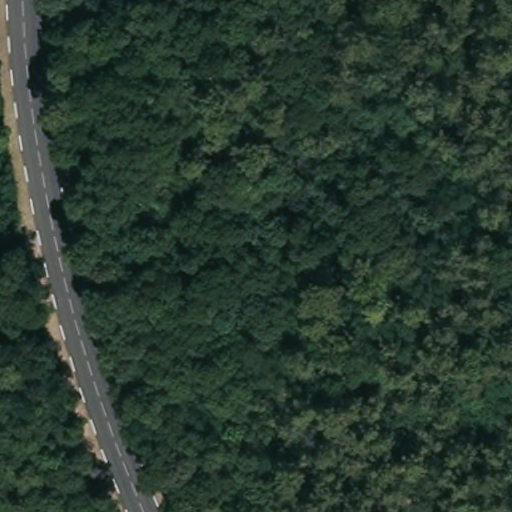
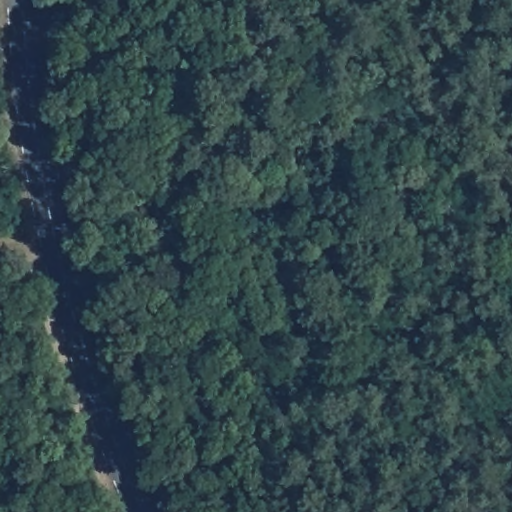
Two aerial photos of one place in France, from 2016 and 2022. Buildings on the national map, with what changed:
[]

